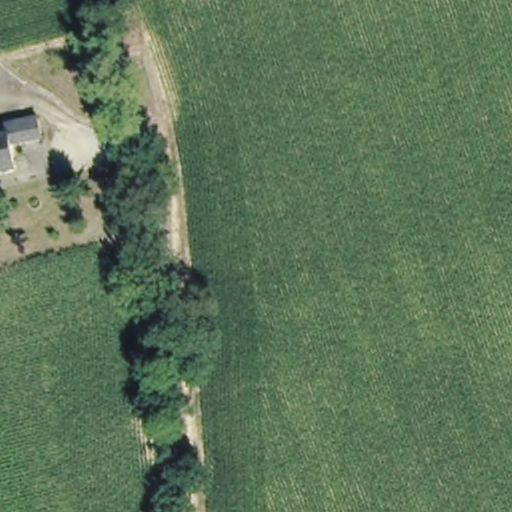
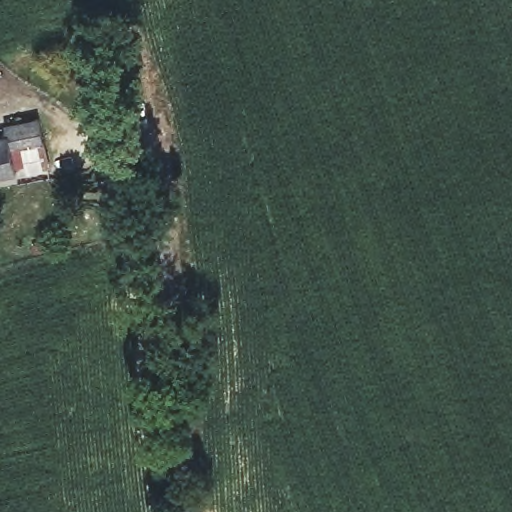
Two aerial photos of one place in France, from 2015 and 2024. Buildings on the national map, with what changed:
unchanged [(6,119),(40,111),(44,133),(16,141),(16,165),(0,169),(0,128),(7,126),(6,119)]

